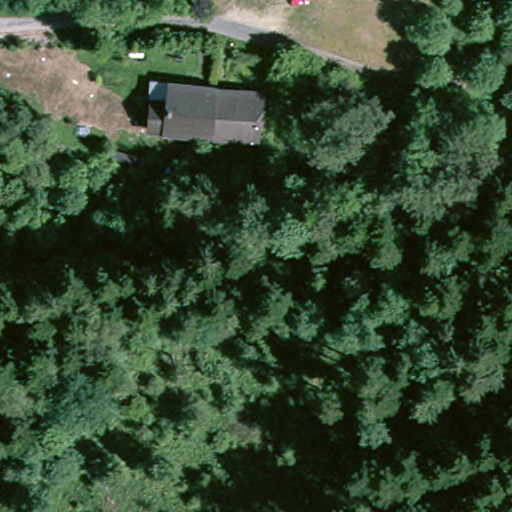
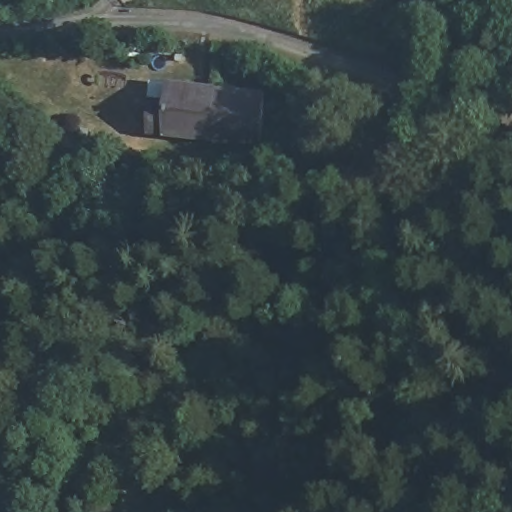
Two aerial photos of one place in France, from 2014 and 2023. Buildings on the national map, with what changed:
unchanged [(164,138),(163,150),(143,148),(150,104),(168,104),(170,83),(185,85),(217,88),(215,141),(164,138)]
unchanged [(217,88),(265,93),(263,145),(215,141),(217,88)]

